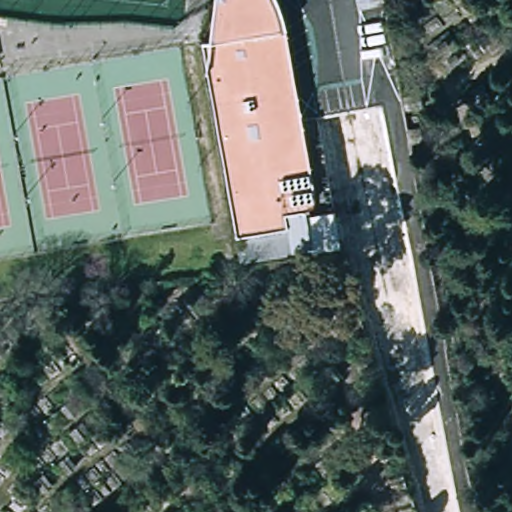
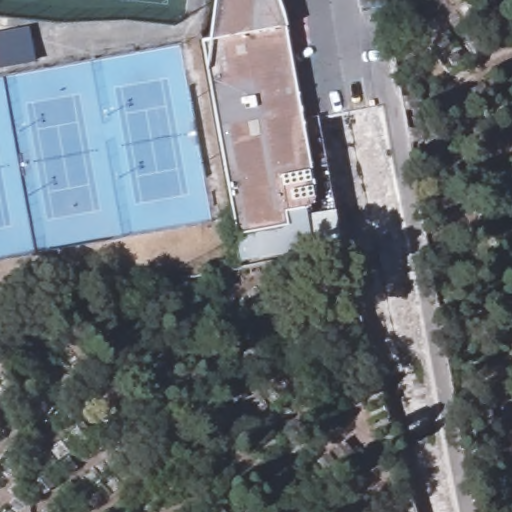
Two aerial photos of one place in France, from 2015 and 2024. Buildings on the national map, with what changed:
unchanged [(281,31),(286,31),(313,205),(313,207),(310,211),(308,213),(305,215),(300,216),(285,219),(287,232),(236,241),(205,47),(212,45),(217,0),(271,0),(272,1),(278,16),(278,17),(280,25),(281,31)]
new [(35,62),(0,69),(0,33),(28,28),(35,62)]
unchanged [(287,232),(290,256),(239,265),(236,241),(287,232)]

